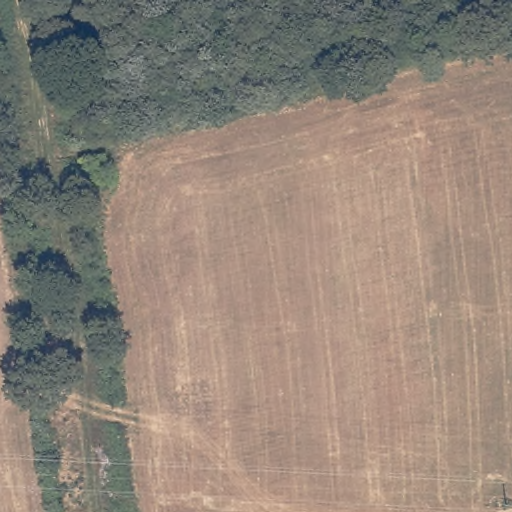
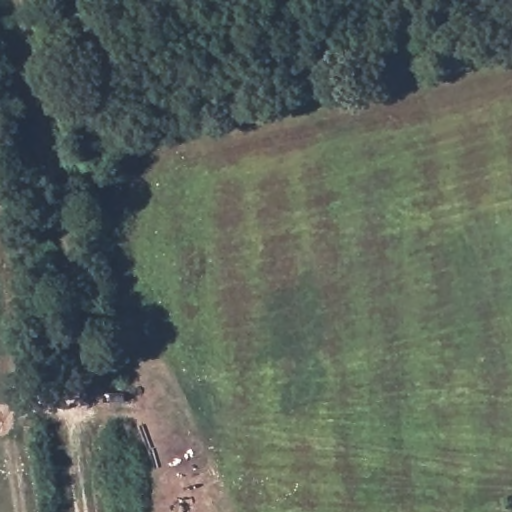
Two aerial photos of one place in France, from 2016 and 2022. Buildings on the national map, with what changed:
unchanged [(97,159),(101,179),(82,180),(79,160),(97,159)]

